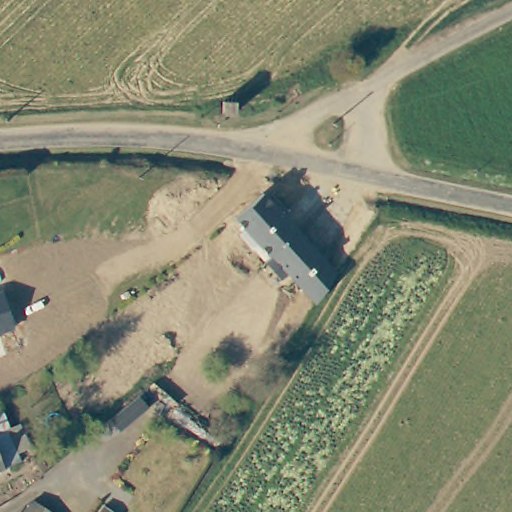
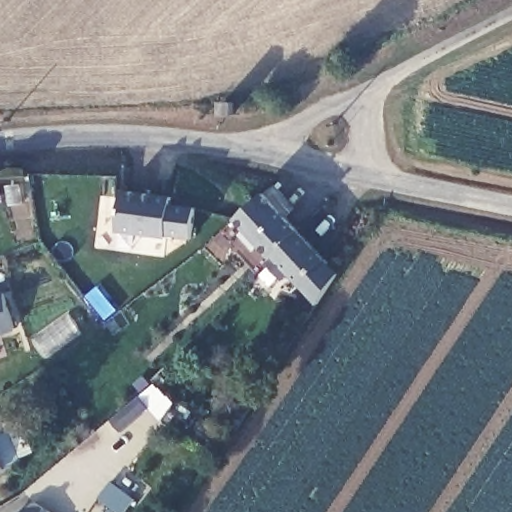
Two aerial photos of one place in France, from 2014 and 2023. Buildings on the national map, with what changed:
new [(192,240),(166,236),(166,238),(115,228),(123,188),(173,196),(171,203),(195,206),(192,240)]
unchanged [(336,273),(317,304),(289,273),(282,280),(267,264),(273,258),(235,219),(264,193),(336,273)]
unchanged [(2,290),(15,329),(0,334),(0,291),(2,290)]
unchanged [(137,396),(147,408),(120,432),(109,419),(137,396)]
unchanged [(3,430),(14,425),(25,448),(12,454),(15,461),(0,467),(0,427),(3,430)]
unchanged [(195,438),(203,426),(225,443),(217,454),(195,438)]
unchanged [(41,512),(26,512),(34,507),(41,512)]

